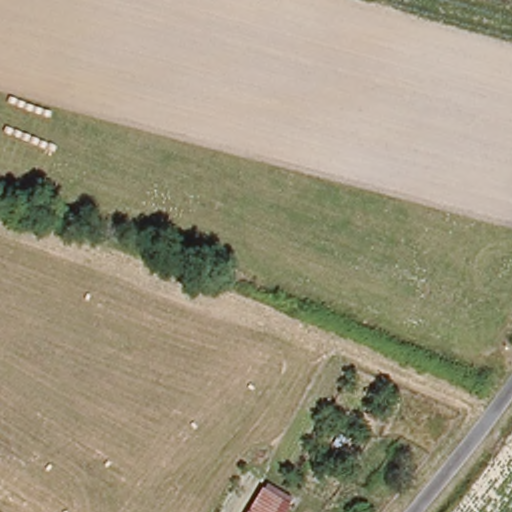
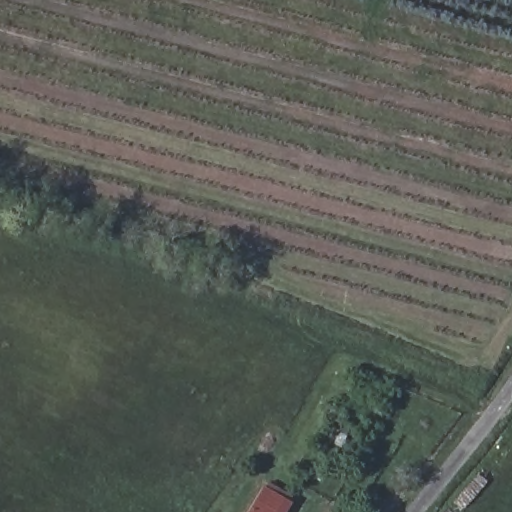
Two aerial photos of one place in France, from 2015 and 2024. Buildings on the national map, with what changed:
unchanged [(295,506),(290,512),(252,512),(269,488),(295,506)]

